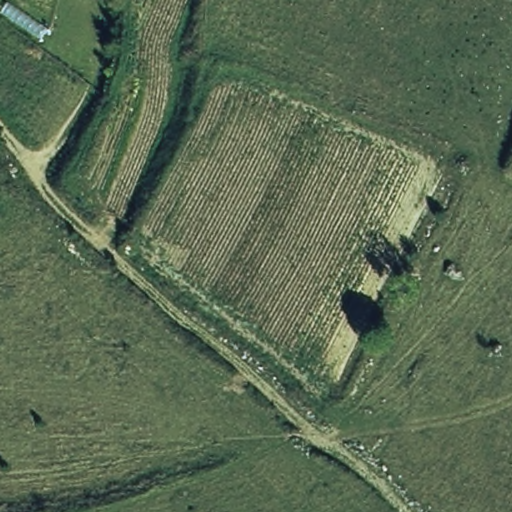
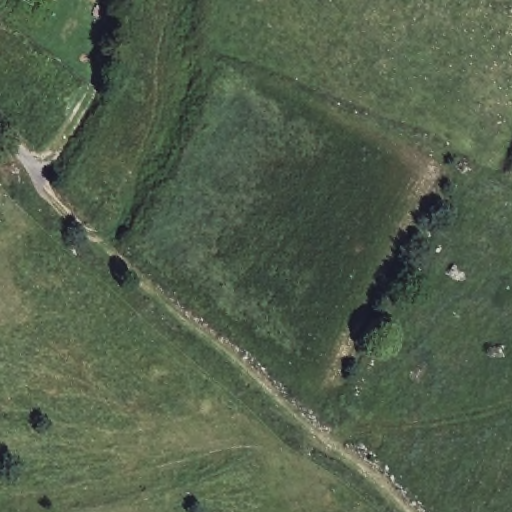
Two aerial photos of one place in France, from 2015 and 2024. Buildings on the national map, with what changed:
[]

